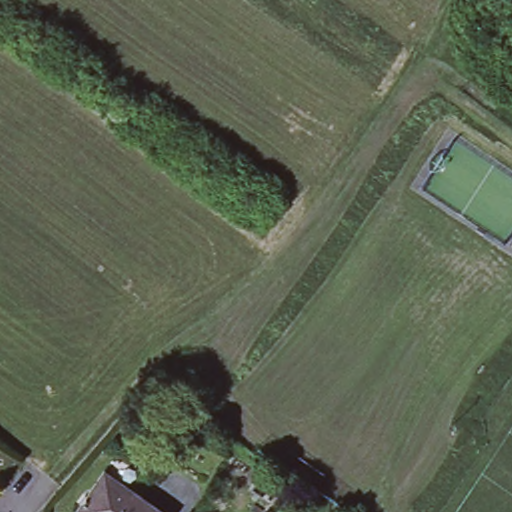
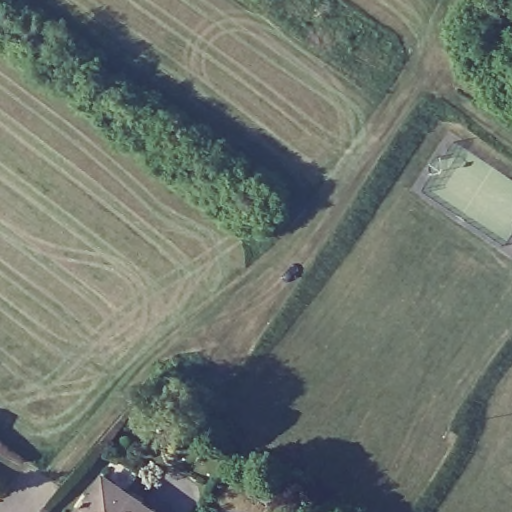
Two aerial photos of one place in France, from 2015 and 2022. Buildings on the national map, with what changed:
unchanged [(160,512),(80,512),(105,474),(160,512)]

